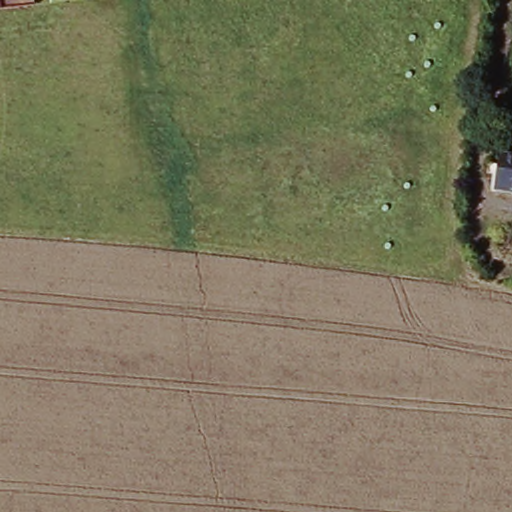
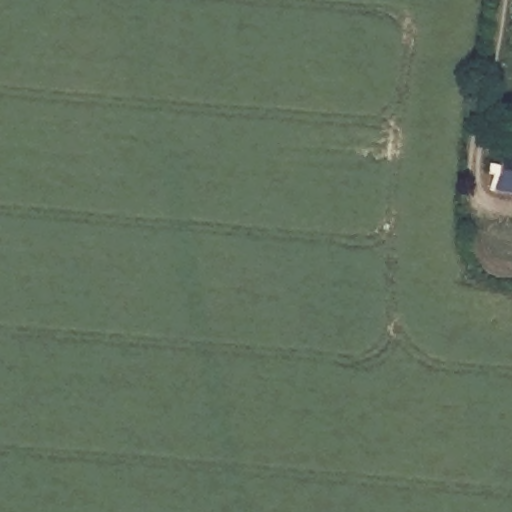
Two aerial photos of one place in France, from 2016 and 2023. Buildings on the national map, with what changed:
unchanged [(494,192),(500,158),(512,160),(512,195),(494,192)]

